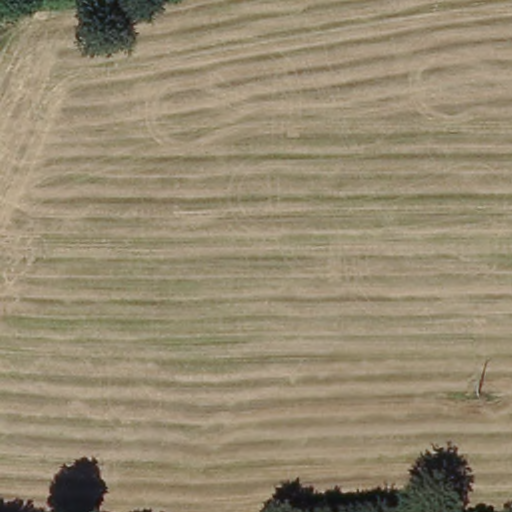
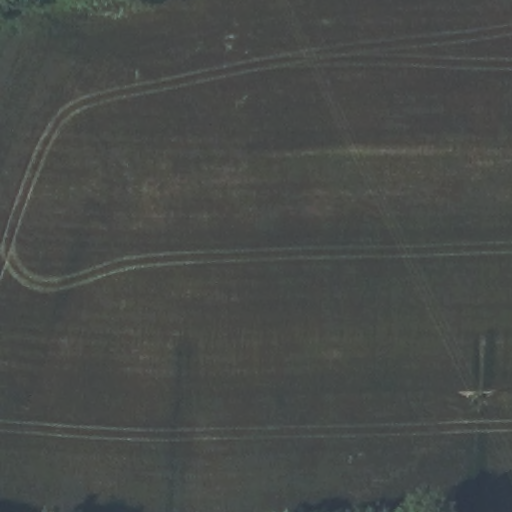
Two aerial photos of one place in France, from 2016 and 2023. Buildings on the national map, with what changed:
[]

